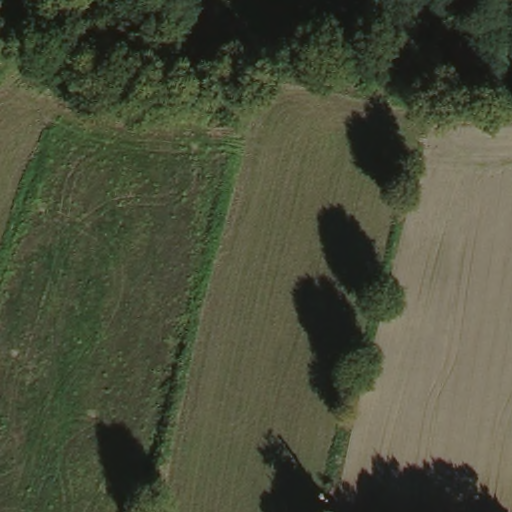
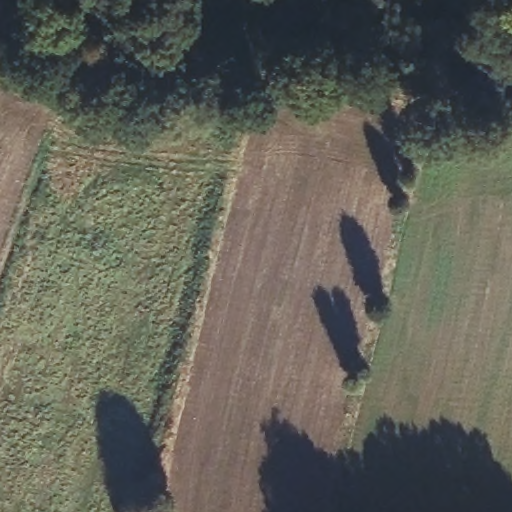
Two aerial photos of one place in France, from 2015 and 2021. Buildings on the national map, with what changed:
[]

